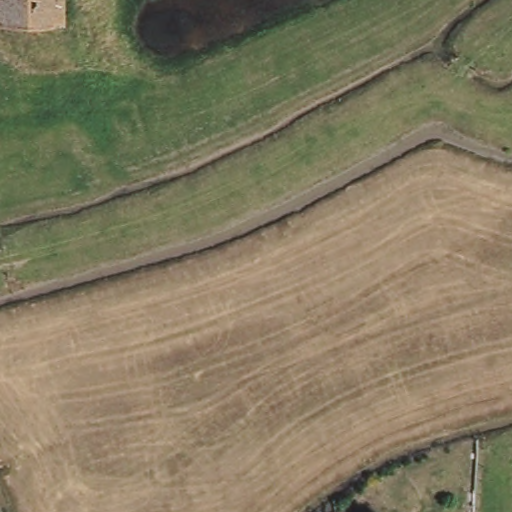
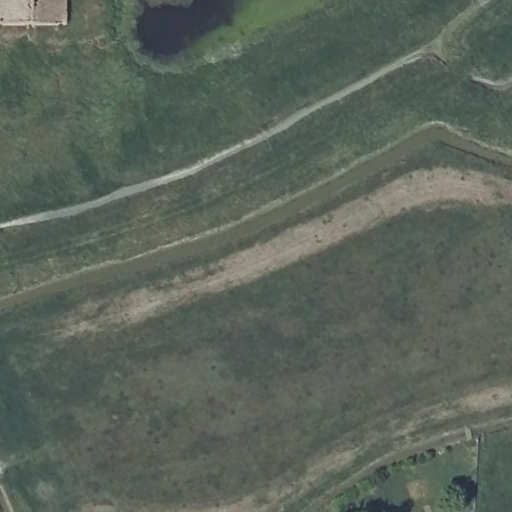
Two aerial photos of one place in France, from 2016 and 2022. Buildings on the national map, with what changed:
unchanged [(0,30),(0,0),(64,0),(65,27),(0,30)]

